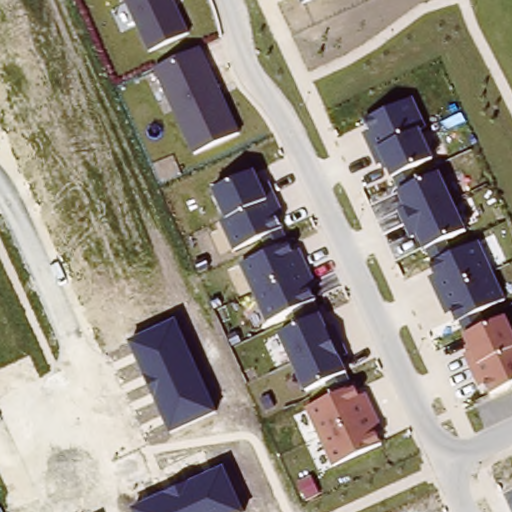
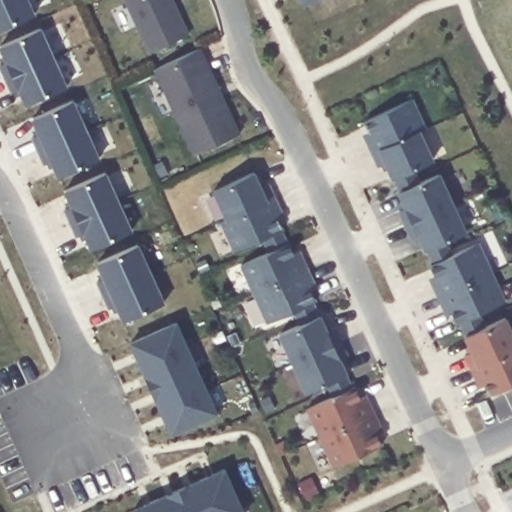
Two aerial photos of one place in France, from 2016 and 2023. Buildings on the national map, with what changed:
new [(35,14),(0,28),(0,0),(29,0),(35,14)]
unchanged [(189,32),(149,50),(126,0),(174,0),(189,32)]
unchanged [(305,5),(302,0),(315,0),(305,5)]
new [(0,67),(0,65),(8,61),(0,47),(0,46),(42,27),(68,85),(25,102),(19,87),(10,91),(0,67)]
unchanged [(238,128),(193,151),(154,68),(199,45),(238,128)]
unchanged [(427,122),(418,126),(429,157),(389,175),(365,120),(419,97),(427,122)]
new [(32,137),(39,133),(32,117),(74,100),(100,158),(57,176),(51,160),(43,164),(32,137)]
new [(64,209),(72,205),(66,190),(107,172),(133,230),(91,246),(85,232),(75,236),(64,209)]
unchanged [(279,228),(237,249),(208,191),(253,172),(279,228)]
unchanged [(464,229),(424,249),(398,192),(440,173),(464,229)]
unchanged [(314,295),(264,320),(238,264),(289,240),(314,295)]
unchanged [(504,298),(457,320),(431,265),(480,241),(504,298)]
new [(96,281),(103,277),(97,261),(139,244),(163,301),(122,319),(115,303),(108,307),(96,281)]
unchanged [(346,370),(305,388),(277,331),(321,313),(346,370)]
unchanged [(491,393),(465,337),(507,316),(512,331),(512,383),(491,393)]
unchanged [(177,320),(218,412),(172,434),(131,343),(177,320)]
unchanged [(380,442),(332,465),(305,411),(357,389),(380,442)]
unchanged [(245,512),(135,512),(134,510),(225,466),(245,512)]
unchanged [(1,512),(0,512),(0,510),(1,512)]

